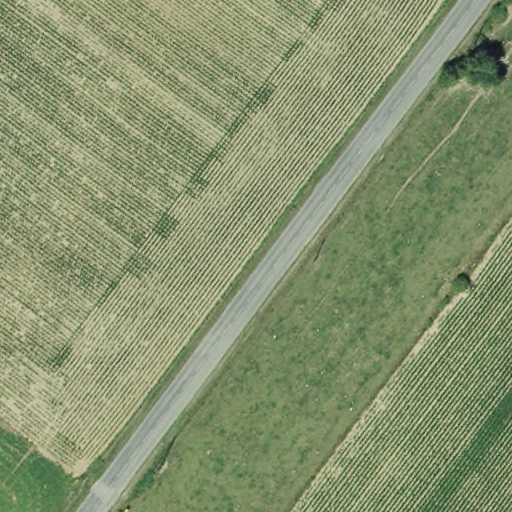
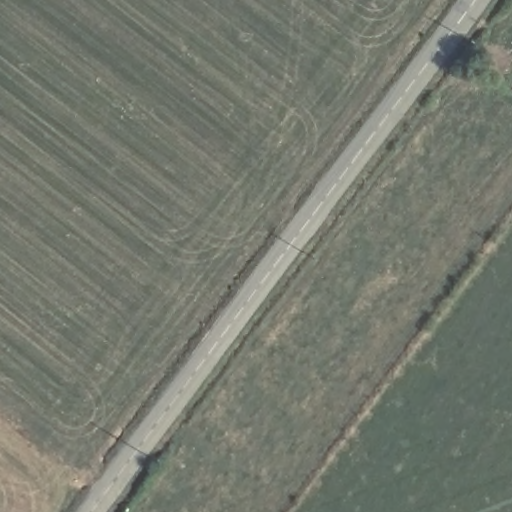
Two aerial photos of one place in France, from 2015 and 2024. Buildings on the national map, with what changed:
[]

